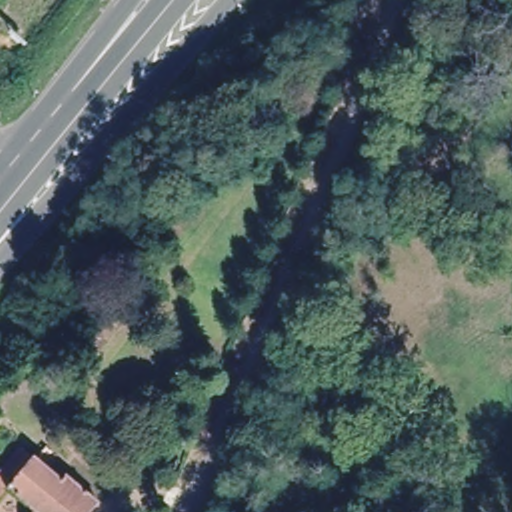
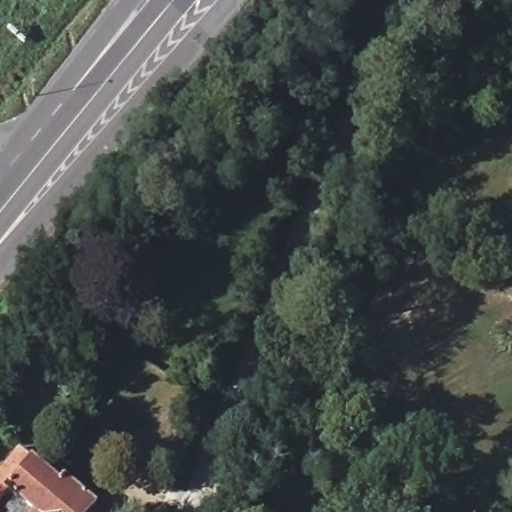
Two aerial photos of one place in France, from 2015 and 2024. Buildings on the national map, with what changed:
unchanged [(0,483),(0,461),(14,443),(55,477),(58,472),(91,498),(80,512),(25,512),(29,507),(0,483)]

